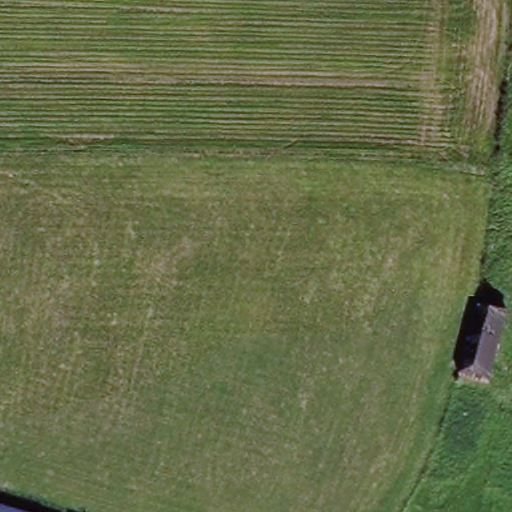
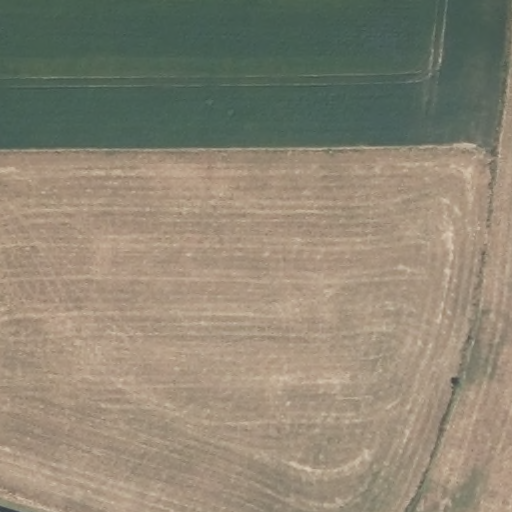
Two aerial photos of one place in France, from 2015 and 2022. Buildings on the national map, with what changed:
demolished [(490,382),(464,376),(477,312),(504,320),(490,382)]
unchanged [(0,512),(0,505),(23,512),(0,512)]

